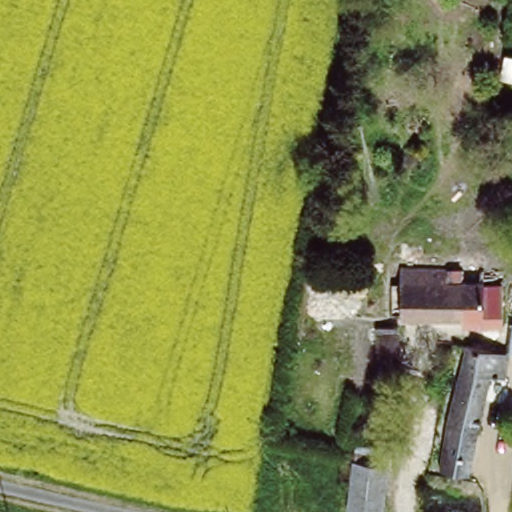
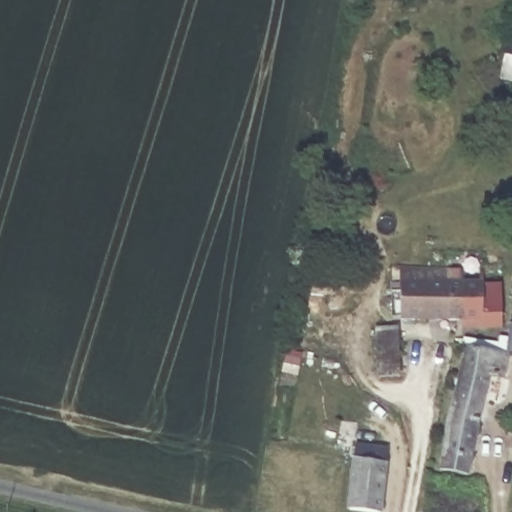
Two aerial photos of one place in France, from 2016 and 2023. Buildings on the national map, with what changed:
unchanged [(512,55),(512,77),(501,74),(505,53),(512,55)]
unchanged [(407,281),(417,282),(417,266),(499,268),(499,282),(512,282),(512,327),(476,326),(476,321),(416,319),(416,315),(406,314),(407,281)]
unchanged [(390,326),(414,325),(416,375),(392,376),(390,326)]
unchanged [(462,468),(434,462),(461,344),(502,352),(499,377),(483,374),(462,468)]
unchanged [(391,457),(385,512),(352,512),(359,453),(391,457)]

